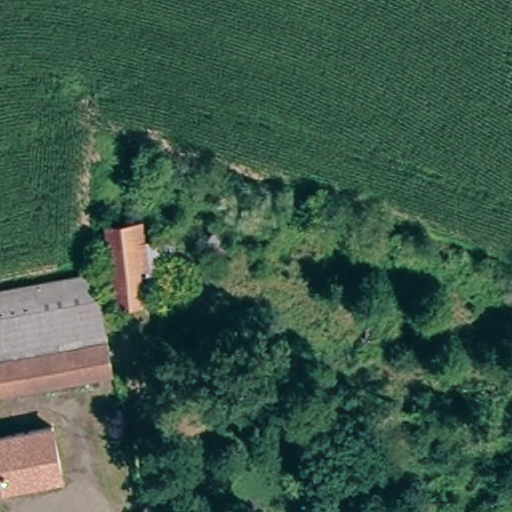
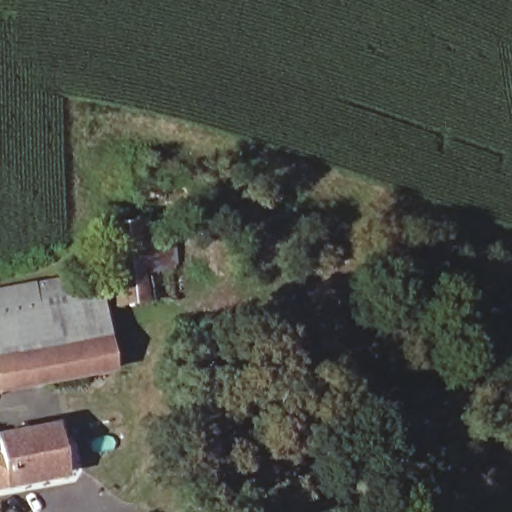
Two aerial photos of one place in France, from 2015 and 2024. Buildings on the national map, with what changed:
unchanged [(144,240),(172,237),(180,297),(114,306),(104,220),(141,219),(144,240)]
unchanged [(109,337),(114,367),(0,385),(0,287),(100,272),(109,337)]
unchanged [(67,480),(5,489),(3,480),(0,480),(0,427),(57,420),(67,480)]

